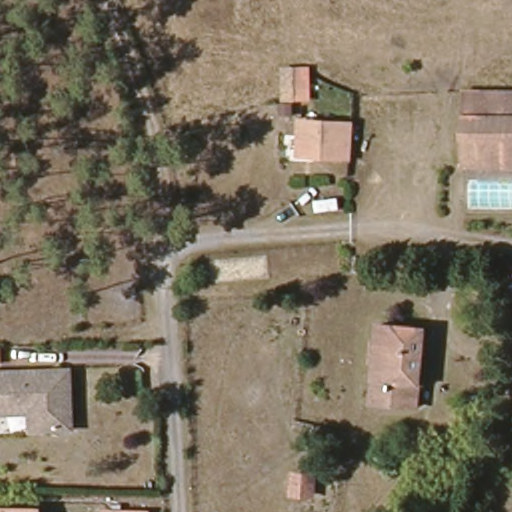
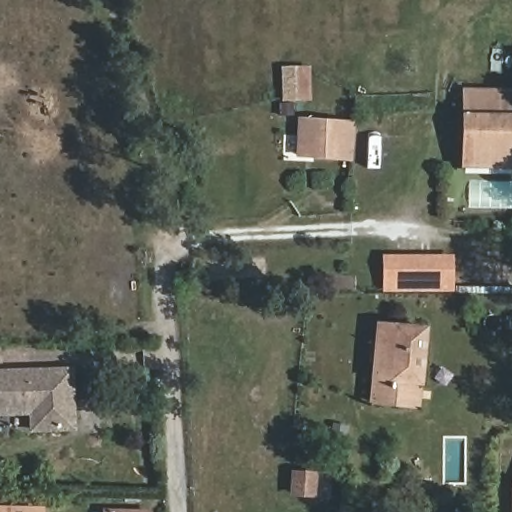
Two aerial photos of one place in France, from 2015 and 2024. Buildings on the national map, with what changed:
unchanged [(311,100),(295,101),(295,115),(280,116),(278,66),(310,65),(311,100)]
unchanged [(466,95),(512,96),(512,121),(465,119),(466,95)]
unchanged [(465,119),(512,121),(512,169),(464,168),(465,119)]
unchanged [(352,163),(296,159),(300,120),(355,124),(352,163)]
new [(453,255),(453,294),(382,294),(382,255),(453,255)]
unchanged [(382,330),(427,334),(421,391),(419,413),(373,407),(375,387),(382,330)]
unchanged [(30,420),(31,410),(0,409),(0,368),(55,369),(71,369),(71,394),(70,428),(40,428),(30,428),(30,420)]
unchanged [(286,467),(319,468),(317,499),(285,496),(286,467)]
new [(512,481),(512,512),(511,481),(512,481)]
unchanged [(37,512),(0,512),(0,506),(37,508),(37,512)]
unchanged [(148,512),(102,512),(102,508),(148,509),(148,512)]

